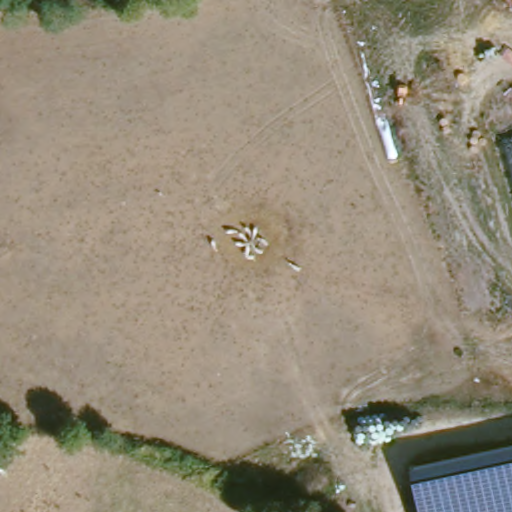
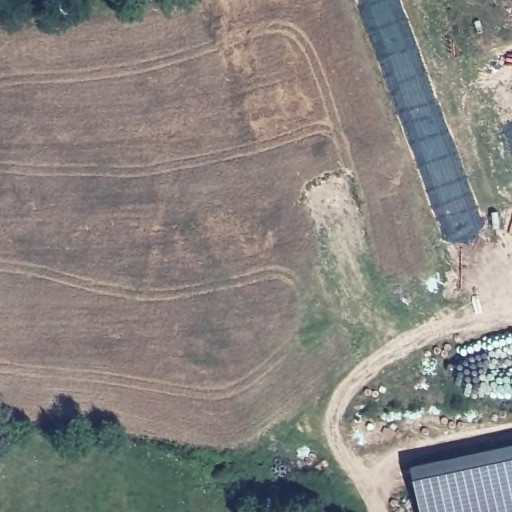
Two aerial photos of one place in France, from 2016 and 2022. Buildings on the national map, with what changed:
unchanged [(415,481),(414,469),(512,446),(512,512),(422,512),(415,481)]

